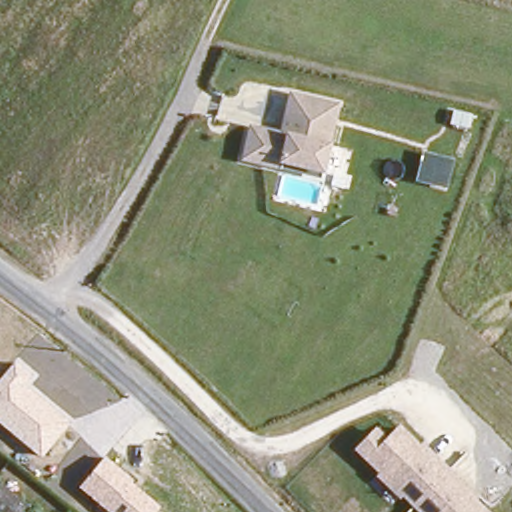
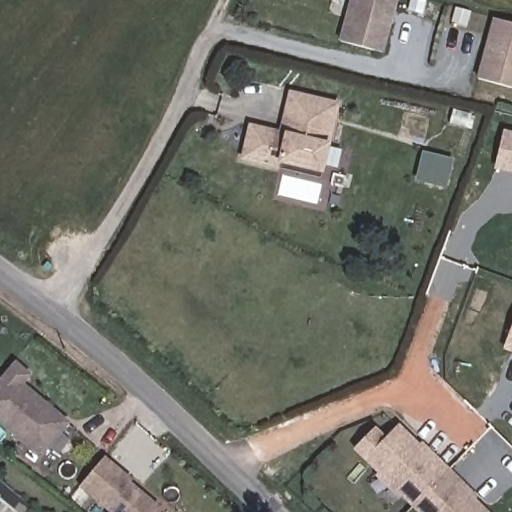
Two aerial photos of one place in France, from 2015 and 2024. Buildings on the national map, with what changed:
new [(339,40),(349,0),(398,0),(384,52),(339,40)]
new [(477,79),(493,19),(512,24),(512,88),(477,79)]
unchanged [(243,161),(251,126),(281,132),(290,94),(340,106),(330,144),(324,175),(281,165),(243,161)]
new [(500,165),(508,132),(512,133),(512,168),(500,165)]
new [(512,334),(512,349),(507,347),(512,334)]
unchanged [(0,423),(0,377),(15,358),(35,376),(28,385),(73,421),(41,458),(0,423)]
unchanged [(388,438),(400,426),(421,446),(424,442),(478,496),(476,499),(489,512),(412,512),(376,477),(379,472),(355,448),(377,427),(388,438)]
unchanged [(108,512),(79,487),(105,457),(132,478),(130,482),(161,508),(157,512),(108,512)]
unchanged [(0,512),(0,481),(28,505),(24,512),(0,512)]

